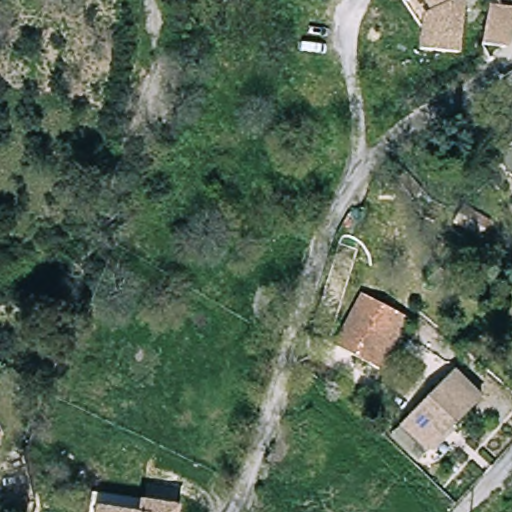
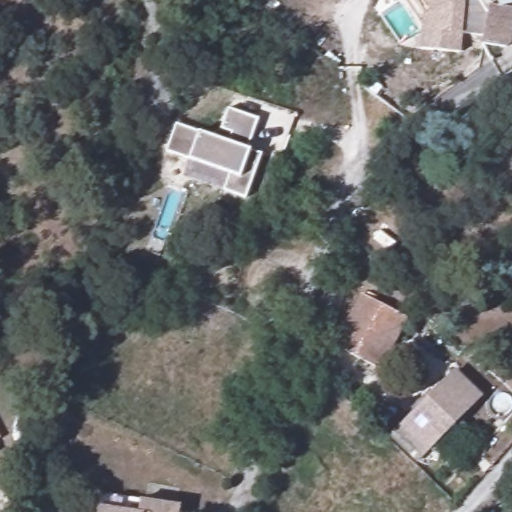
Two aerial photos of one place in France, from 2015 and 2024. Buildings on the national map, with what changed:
unchanged [(423,48),(426,13),(415,0),(469,0),(464,52),(423,48)]
new [(495,5),(493,0),(511,0),(495,5)]
unchanged [(487,6),(497,8),(511,10),(504,50),(480,45),(487,6)]
new [(259,119),(249,148),(251,148),(262,154),(246,200),(185,177),(192,160),(189,160),(167,151),(177,123),(199,132),(231,142),(232,134),(221,130),(228,108),(259,119)]
unchanged [(512,150),(512,180),(497,163),(512,150)]
unchanged [(388,191),(403,174),(421,193),(405,208),(388,191)]
unchanged [(451,227),(462,208),(489,224),(479,242),(451,227)]
unchanged [(423,283),(431,269),(445,277),(437,292),(423,283)]
unchanged [(332,348),(359,297),(406,322),(380,373),(332,348)]
unchanged [(452,371),(480,398),(413,467),(385,439),(452,371)]
unchanged [(185,506),(184,512),(143,512),(145,499),(185,506)]
unchanged [(100,512),(101,506),(134,512),(100,512)]

